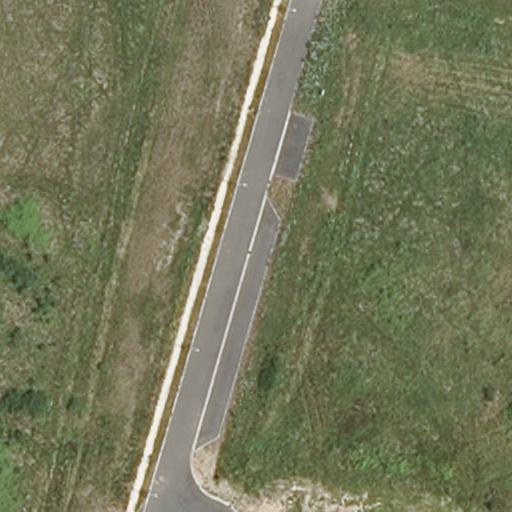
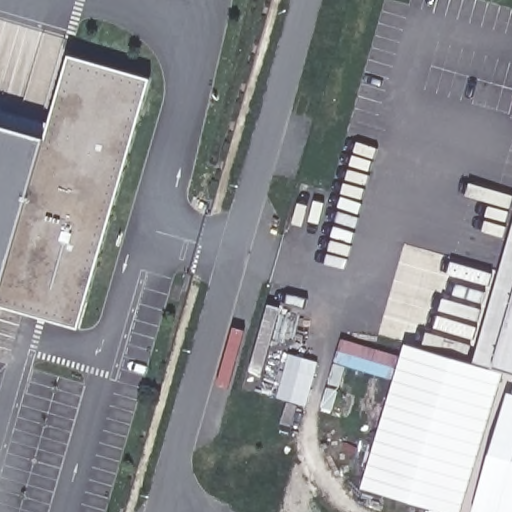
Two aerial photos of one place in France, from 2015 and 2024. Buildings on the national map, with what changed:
new [(49,123),(70,56),(150,80),(78,328),(0,305),(0,109),(49,123)]
new [(512,373),(496,368),(474,364),(512,223),(512,373)]
new [(505,371),(461,512),(446,512),(363,487),(405,343),(474,364),(496,368),(505,371)]
new [(307,406),(277,398),(289,355),(318,362),(307,406)]
new [(512,394),(512,512),(474,512),(507,392),(512,394)]

